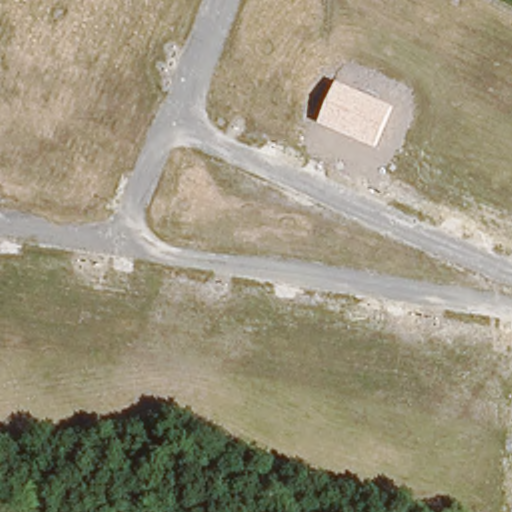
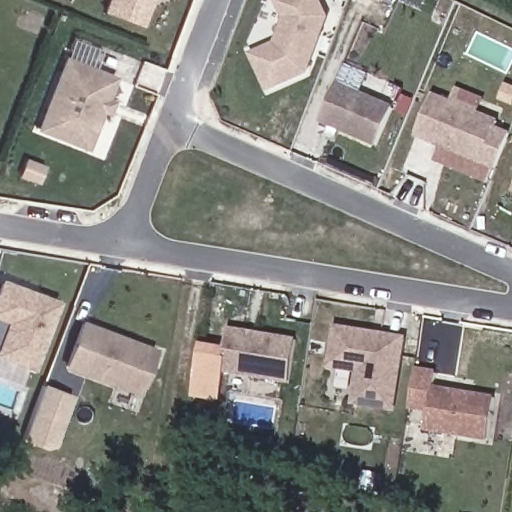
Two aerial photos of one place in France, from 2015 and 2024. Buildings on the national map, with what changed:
new [(103,11),(107,0),(153,0),(143,25),(103,11)]
new [(266,93),(248,54),(274,43),(282,19),(274,0),(321,0),(329,18),(307,74),(266,93)]
new [(35,129),(63,56),(117,76),(89,151),(35,129)]
unchanged [(374,147),(320,124),(337,81),(393,106),(374,147)]
new [(415,138),(433,93),(498,119),(496,126),(510,131),(494,169),(415,138)]
new [(0,336),(5,322),(0,320),(0,278),(61,299),(35,370),(0,357),(0,336)]
new [(64,366),(81,319),(157,348),(139,396),(64,366)]
new [(350,404),(355,374),(327,369),(335,325),(407,336),(394,411),(350,404)]
new [(222,374),(228,327),(296,337),(289,384),(222,374)]
new [(424,432),(426,413),(409,411),(416,367),(437,369),(435,386),(494,395),(487,442),(424,432)]
new [(52,450),(21,439),(41,384),(72,396),(52,450)]

